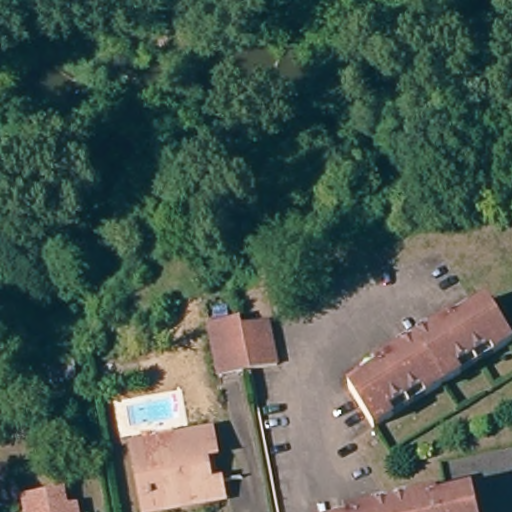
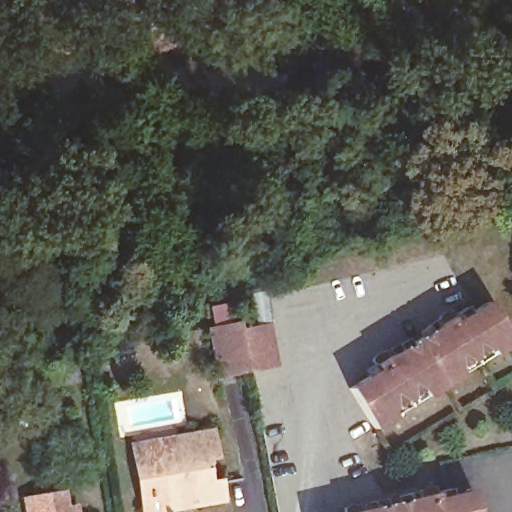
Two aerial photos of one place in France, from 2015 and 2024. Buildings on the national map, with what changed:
unchanged [(380,367),(376,362),(372,356),(390,345),(394,351),(422,335),(445,321),(442,316),(458,307),(461,312),(465,317),(489,302),(512,338),(512,341),(494,352),(466,368),(448,380),(426,393),(396,410),(376,422),(352,383),(380,367)]
unchanged [(214,375),(204,323),(241,317),(243,327),(250,368),(214,375)]
unchanged [(275,320),(283,362),(250,368),(243,327),(275,320)]
unchanged [(178,435),(207,429),(212,452),(204,454),(209,476),(218,475),(222,494),(161,507),(144,511),(129,446),(178,435)]
unchanged [(422,487),(440,483),(442,490),(444,497),(475,491),(481,512),(347,512),(345,505),(360,502),(362,509),(424,494),(422,487)]
unchanged [(24,507),(21,491),(28,490),(52,487),(54,497),(62,502),(78,500),(80,512),(25,512),(24,507)]

